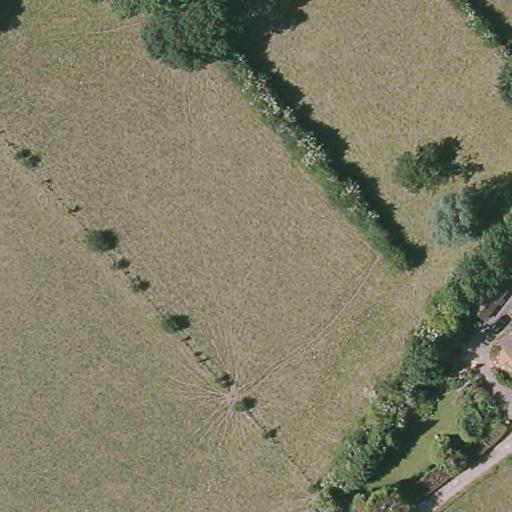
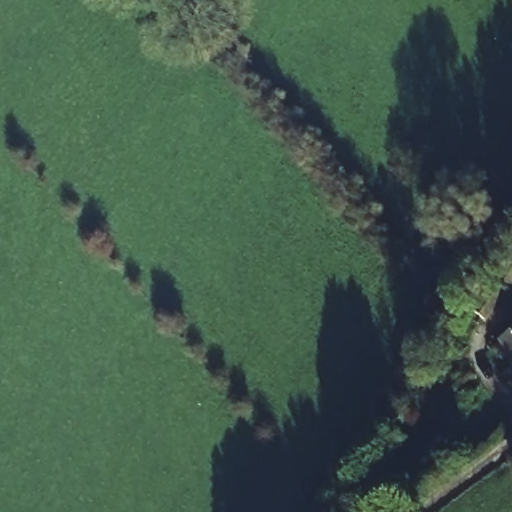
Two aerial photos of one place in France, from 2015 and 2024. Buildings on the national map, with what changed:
unchanged [(469,295),(512,245),(512,284),(486,313),(469,295)]
unchanged [(512,360),(498,345),(512,332),(512,360)]

